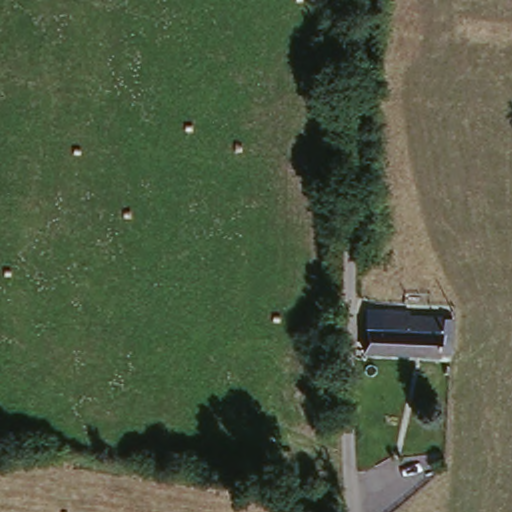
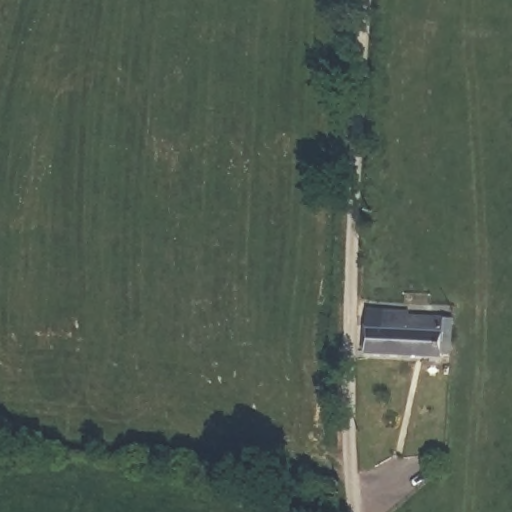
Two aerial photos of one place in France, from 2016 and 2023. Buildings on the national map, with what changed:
unchanged [(407,307),(450,312),(447,356),(364,351),(368,322),(377,322),(379,305),(407,307)]

